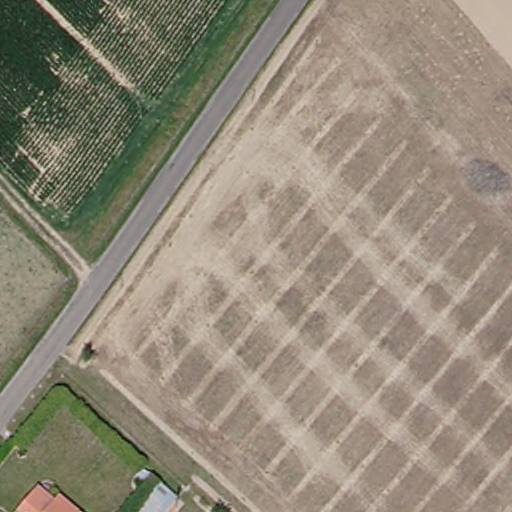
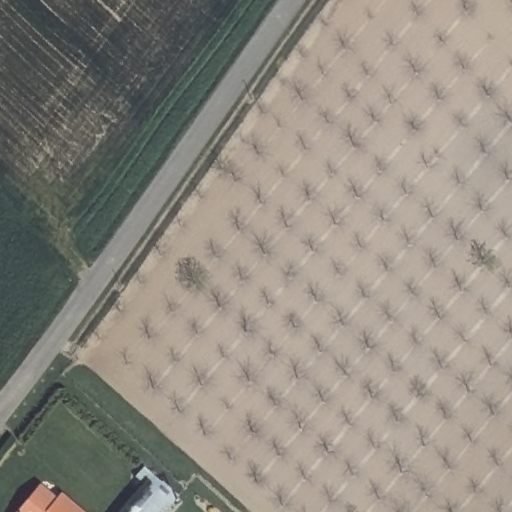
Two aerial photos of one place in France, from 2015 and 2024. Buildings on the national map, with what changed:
unchanged [(50,495),(55,490),(76,512),(3,512),(17,499),(36,480),(50,495)]

